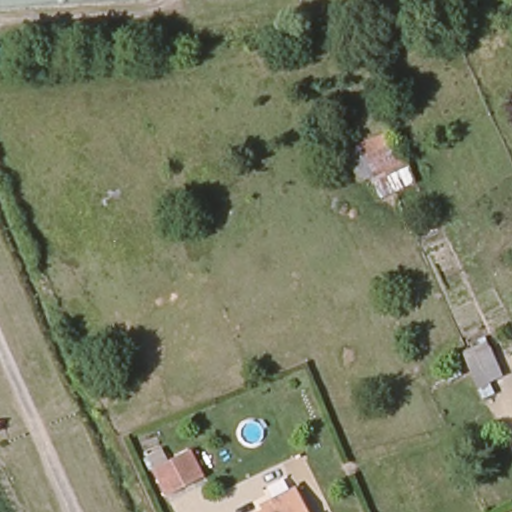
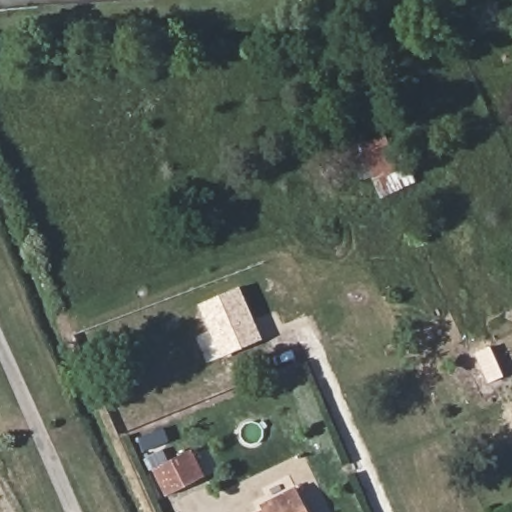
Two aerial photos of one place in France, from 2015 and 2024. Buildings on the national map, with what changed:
unchanged [(372,176),(354,181),(343,150),(393,129),(415,181),(372,176)]
new [(221,357),(198,305),(239,286),(262,340),(221,357)]
unchanged [(196,451),(209,477),(174,493),(162,467),(196,451)]
unchanged [(261,512),(259,507),(271,502),(295,488),(307,512),(261,512)]

